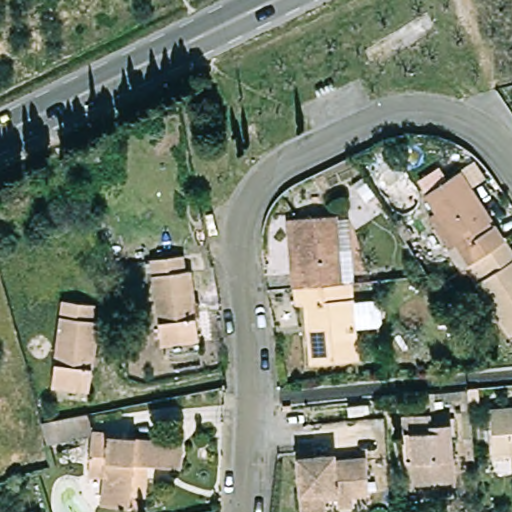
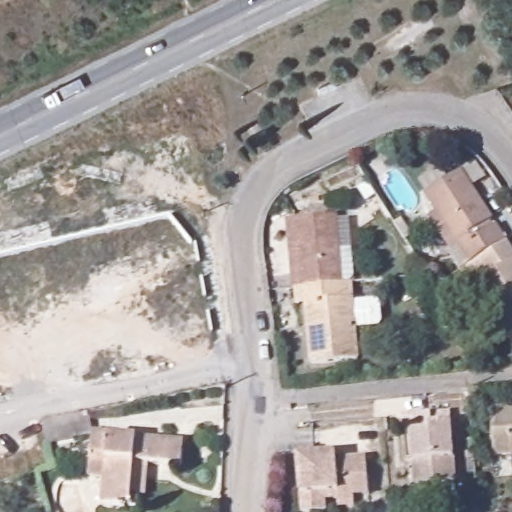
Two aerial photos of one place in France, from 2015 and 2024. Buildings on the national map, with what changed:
unchanged [(429,215),(437,210),(425,191),(460,169),(478,157),(483,162),(491,172),(471,185),(492,217),(482,223),(486,229),(496,223),(507,239),(470,261),(457,240),(449,245),(429,215)]
unchanged [(290,239),(297,238),(295,213),(335,210),(341,276),(296,280),(294,280),(290,239)]
unchanged [(509,334),(466,264),(470,261),(507,239),(512,247),(512,332),(509,334)]
demolished [(186,270),(193,270),(200,339),(163,343),(152,255),(184,251),(186,270)]
unchanged [(357,352),(311,356),(306,296),(297,297),(296,280),(341,276),(350,275),(357,352)]
demolished [(93,306),(93,322),(102,323),(92,391),(55,386),(65,302),(93,306)]
unchanged [(511,458),(511,452),(494,452),(490,406),(512,405),(512,458),(511,458)]
unchanged [(430,412),(432,422),(451,421),(454,480),(414,482),(414,465),(406,465),(404,414),(430,412)]
unchanged [(133,499),(132,509),(104,507),(106,479),(90,478),(93,436),(112,437),(111,439),(186,446),(183,471),(149,468),(146,500),(133,499)]
unchanged [(327,504),(327,512),(304,512),(298,455),(315,454),(316,459),(325,458),(336,457),(336,465),(366,462),(371,498),(355,500),(355,503),(340,504),(327,504)]

